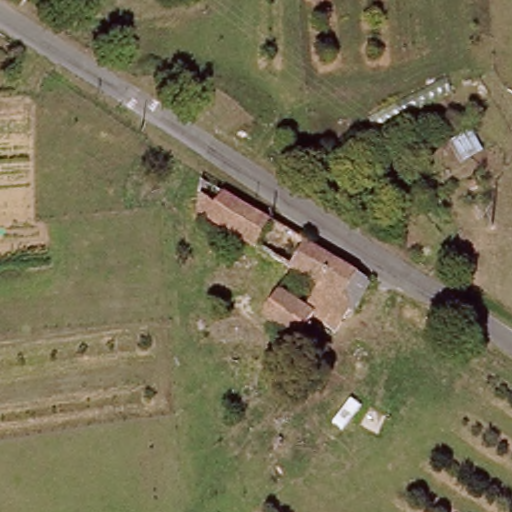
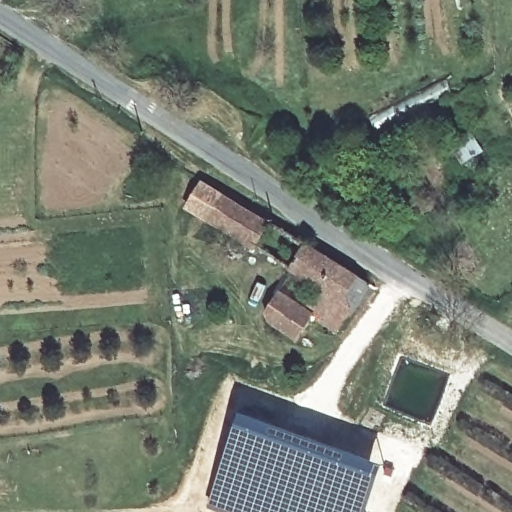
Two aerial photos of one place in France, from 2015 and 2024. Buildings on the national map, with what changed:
unchanged [(199,213),(205,180),(272,220),(257,251),(199,213)]
unchanged [(277,287),(286,274),(307,242),(372,286),(336,326),(316,313),(277,287)]
unchanged [(277,287),(316,313),(295,341),(260,317),(277,287)]
new [(355,451),(386,465),(369,512),(221,512),(206,506),(241,410),(355,451)]

